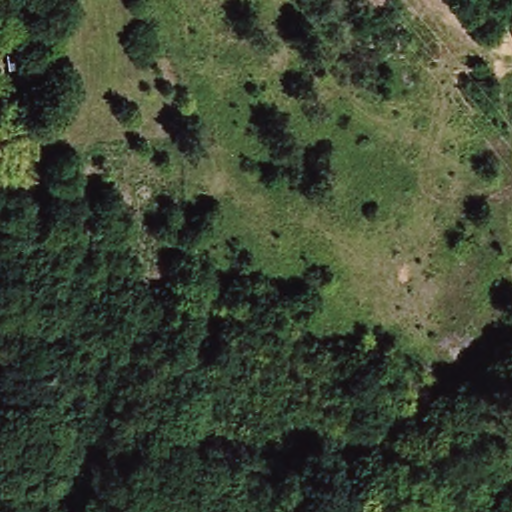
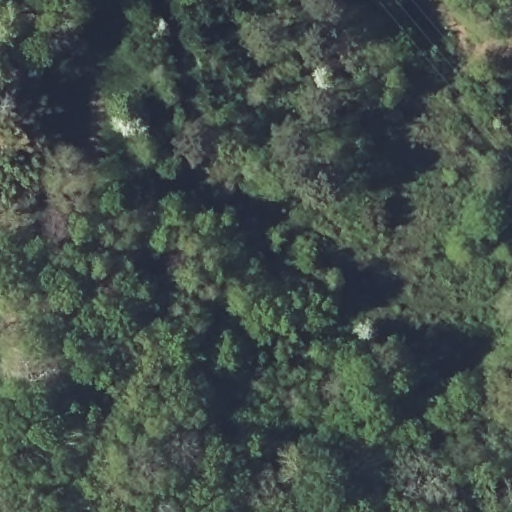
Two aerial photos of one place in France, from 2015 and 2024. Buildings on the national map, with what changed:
unchanged [(512,12),(512,36),(504,15),(512,12)]

